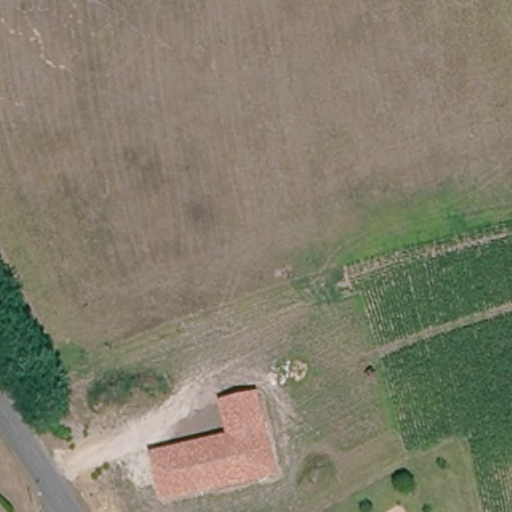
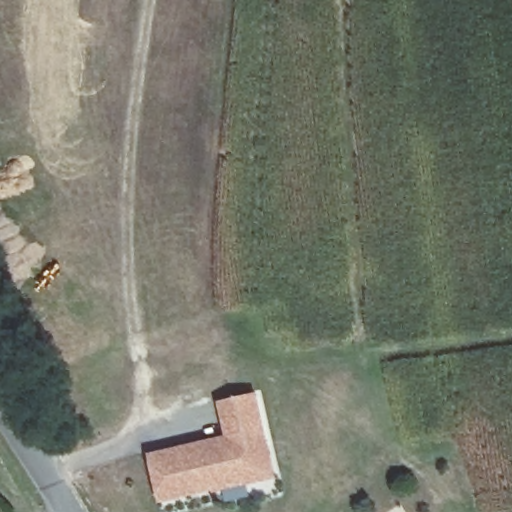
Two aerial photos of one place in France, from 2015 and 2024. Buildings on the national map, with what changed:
unchanged [(151,453),(226,436),(218,402),(257,392),(277,477),(159,501),(151,453)]

